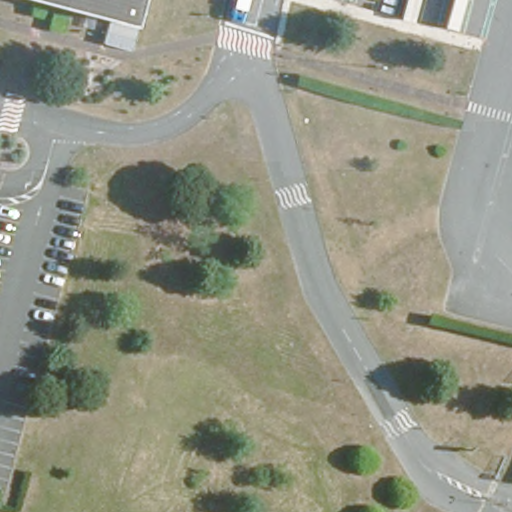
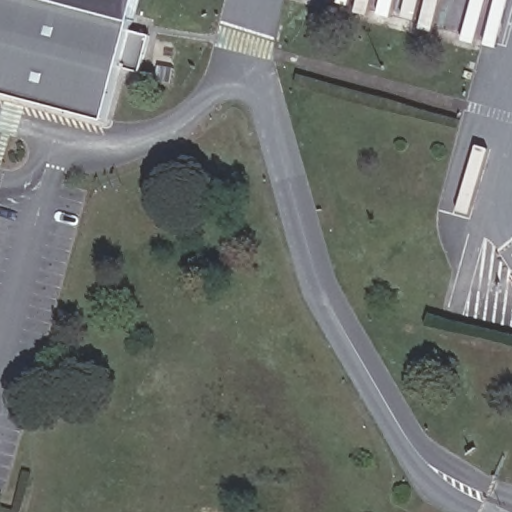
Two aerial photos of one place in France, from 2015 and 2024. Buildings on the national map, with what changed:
new [(121,32),(146,40),(138,70),(113,63),(98,119),(0,93),(0,0),(40,0),(123,24),(121,32)]
unchanged [(123,24),(40,0),(130,0),(123,24)]

